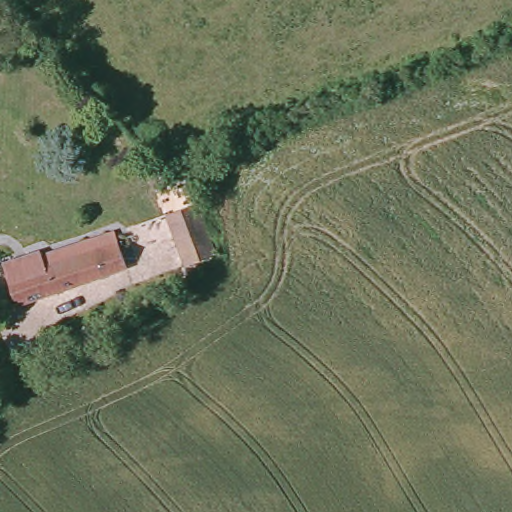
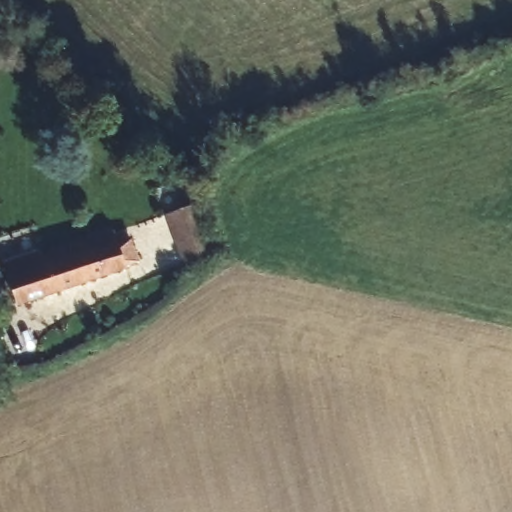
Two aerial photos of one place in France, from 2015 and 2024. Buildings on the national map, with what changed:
unchanged [(215,261),(184,267),(172,211),(202,206),(215,261)]
unchanged [(6,261),(41,248),(44,254),(116,228),(130,264),(22,305),(6,261)]

